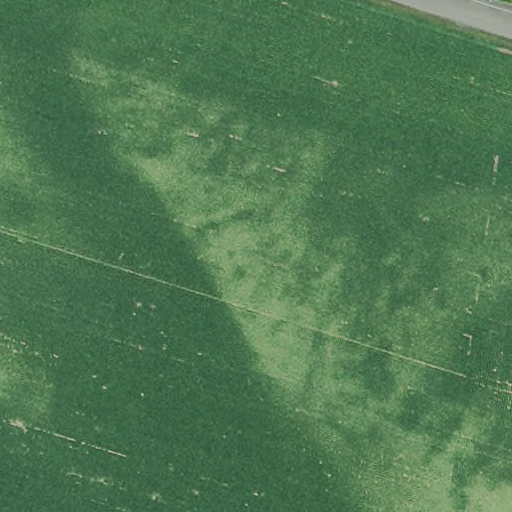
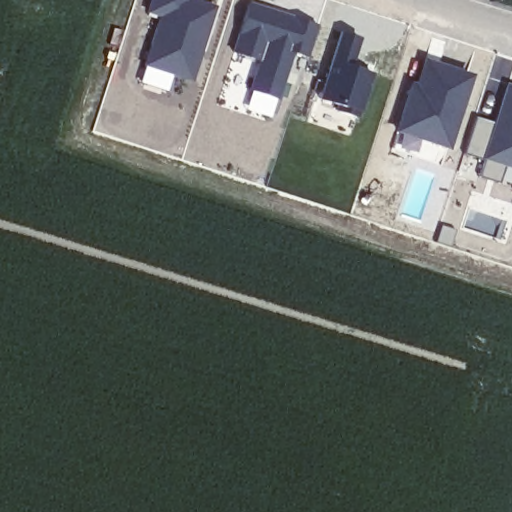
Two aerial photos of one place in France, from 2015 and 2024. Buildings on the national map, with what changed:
new [(156,16),(144,11),(148,0),(201,0),(212,3),(187,80),(171,74),(165,90),(138,81),(156,16)]
new [(247,0),(248,0),(314,23),(303,56),(291,52),(274,98),(247,89),(256,60),(230,50),(247,0)]
new [(363,37),(355,62),(376,71),(359,119),(336,110),(339,105),(319,96),(343,28),(363,37)]
new [(405,92),(423,54),(472,73),(438,164),(394,146),(397,134),(392,133),(405,92)]
new [(491,120),(505,81),(512,84),(512,186),(475,176),(479,159),(462,152),(474,115),(491,120)]

